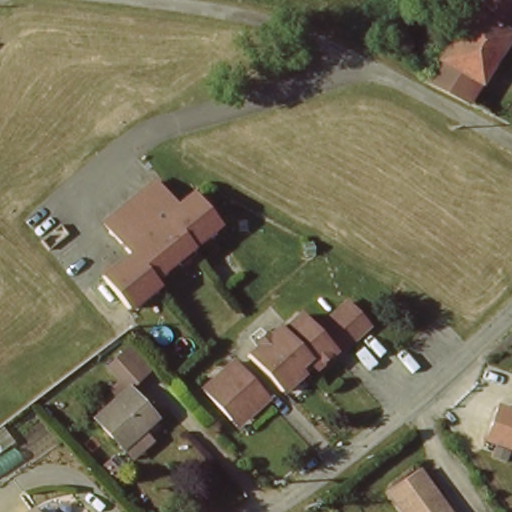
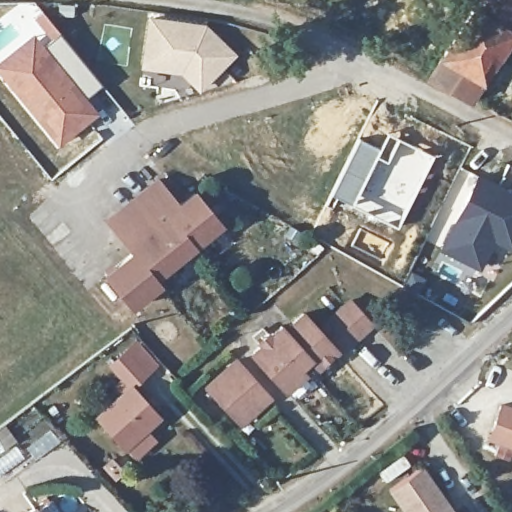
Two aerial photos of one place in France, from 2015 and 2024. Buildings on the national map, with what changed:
unchanged [(478,0),(512,0),(512,32),(472,8),(478,0)]
new [(40,8),(101,84),(87,96),(37,33),(40,32),(27,18),(40,8)]
unchanged [(512,35),(472,99),(426,77),(472,8),(512,32),(512,35)]
new [(198,91),(181,73),(141,69),(148,15),(204,23),(236,55),(198,91)]
new [(32,28),(37,33),(87,96),(98,112),(55,147),(0,79),(0,55),(32,28)]
new [(357,137),(378,146),(387,131),(435,155),(399,229),(328,194),(357,137)]
new [(476,174),(512,190),(512,252),(502,261),(477,270),(438,249),(448,226),(476,174)]
unchanged [(153,182),(173,208),(189,194),(215,227),(149,281),(155,287),(127,310),(101,278),(129,256),(102,223),(153,182)]
unchanged [(297,375),(277,392),(246,354),(275,329),(276,330),(297,314),(311,330),(344,302),(365,327),(331,356),(328,352),(310,368),(308,365),(304,369),(297,375)]
unchanged [(124,360),(141,384),(124,396),(107,372),(124,360)]
unchanged [(228,420),(201,387),(232,361),(264,398),(245,415),(233,426),(228,420)]
unchanged [(110,453),(88,422),(124,396),(146,428),(110,453)]
unchanged [(499,404),(512,409),(512,447),(486,438),(499,404)]
unchanged [(419,471),(449,512),(404,512),(389,493),(419,471)]
unchanged [(36,512),(28,512),(33,508),(36,512)]

